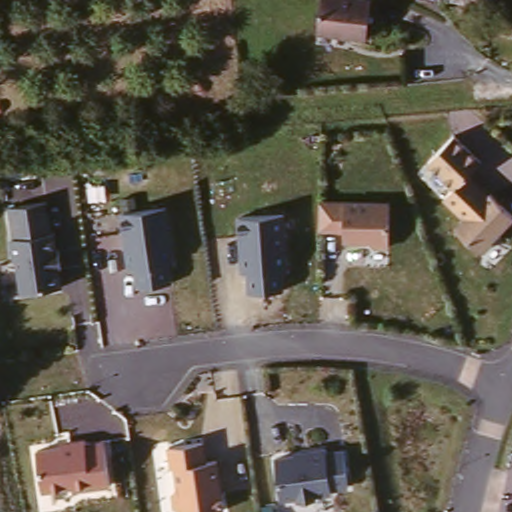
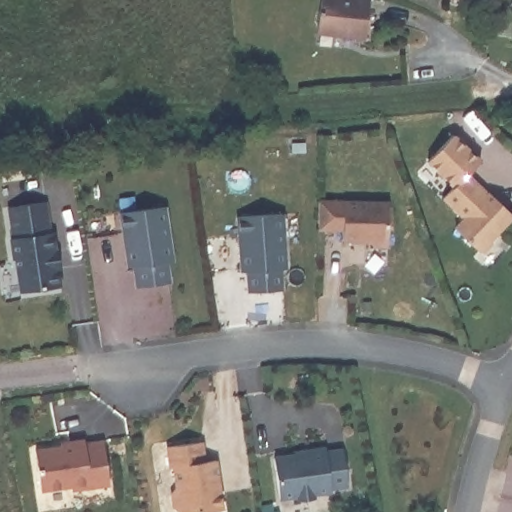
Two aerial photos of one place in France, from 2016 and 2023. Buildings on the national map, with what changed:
unchanged [(365,35),(316,30),(320,0),(370,0),(365,35)]
unchanged [(450,136),(476,163),(465,174),(512,220),(474,257),(447,232),(457,220),(436,200),(447,187),(423,162),(450,136)]
unchanged [(387,202),(385,249),(339,248),(337,237),(315,236),(315,199),(387,202)]
unchanged [(4,207),(42,203),(59,286),(18,293),(4,207)]
unchanged [(164,207),(169,262),(166,265),(167,284),(137,288),(134,268),(122,268),(117,215),(164,207)]
unchanged [(280,212),(285,265),(278,268),(278,292),(245,293),(243,274),(238,274),(233,218),(280,212)]
unchanged [(43,497),(32,447),(101,435),(108,486),(43,497)]
unchanged [(177,512),(166,448),(199,443),(201,459),(213,457),(222,508),(201,512),(177,512)]
unchanged [(339,445),(347,490),(276,503),(272,456),(339,445)]

